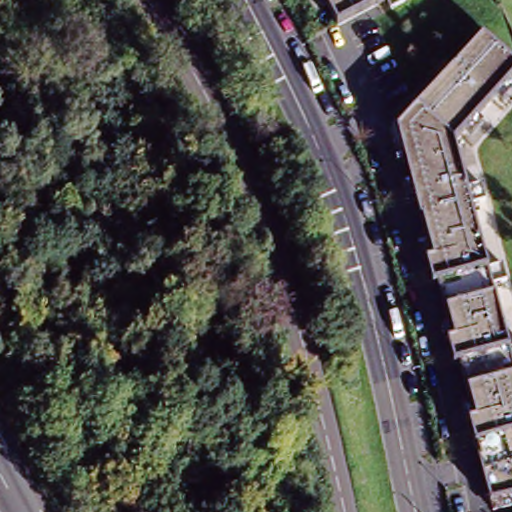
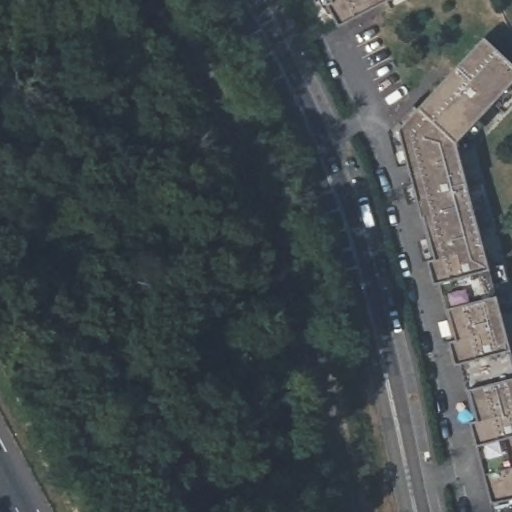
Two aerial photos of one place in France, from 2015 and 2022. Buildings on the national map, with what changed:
unchanged [(391,9),(388,2),(339,26),(327,6),(332,3),(331,0),(407,0),(391,9)]
unchanged [(512,67),(512,82),(507,87),(512,92),(512,97),(501,108),(494,102),(477,120),(482,126),(471,138),(464,133),(455,143),(467,189),(482,186),(485,201),(472,208),(489,270),(504,267),(507,282),(492,287),(511,351),(512,351),(512,497),(491,502),(470,422),(477,421),(462,362),(455,364),(449,341),(455,339),(441,281),(433,282),(429,260),(435,259),(425,217),(421,218),(399,129),(485,39),(512,67)]

